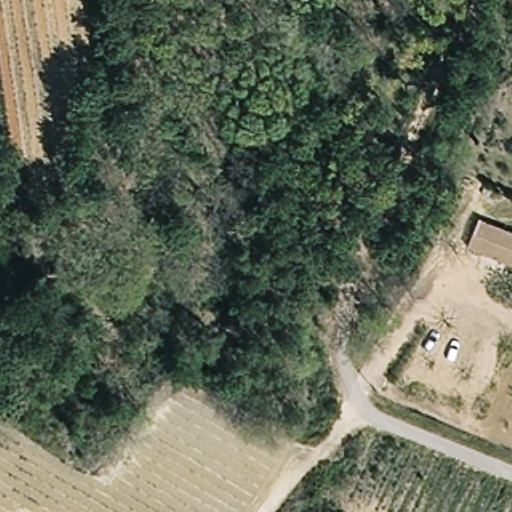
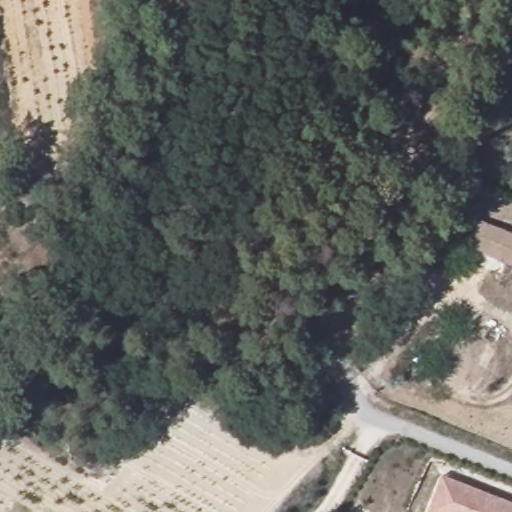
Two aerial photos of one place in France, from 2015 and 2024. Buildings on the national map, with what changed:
unchanged [(481,217),(512,231),(512,266),(469,247),(481,217)]
new [(512,503),(512,512),(429,512),(426,511),(440,475),(512,503)]

